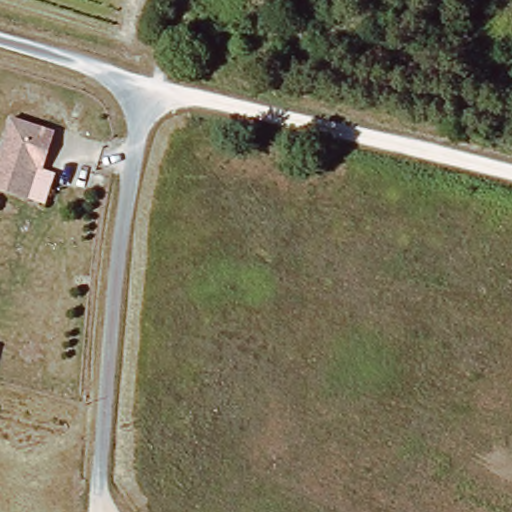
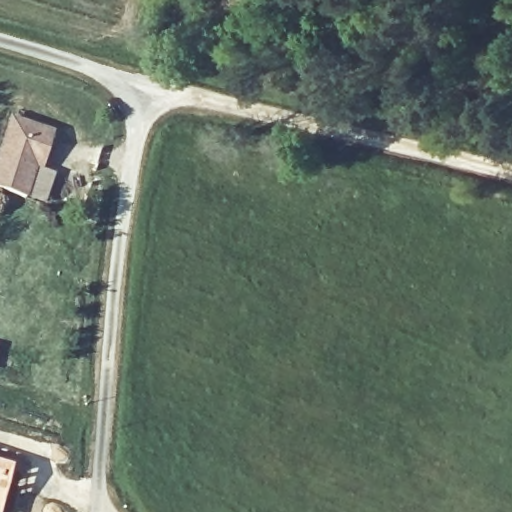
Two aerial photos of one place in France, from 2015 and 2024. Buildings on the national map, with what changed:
unchanged [(36,167),(24,198),(0,189),(0,157),(14,120),(55,135),(42,170),(36,167)]
new [(13,467),(0,511),(0,463),(13,467)]

